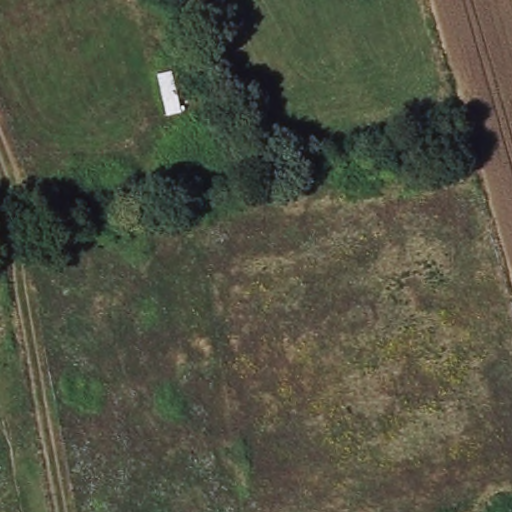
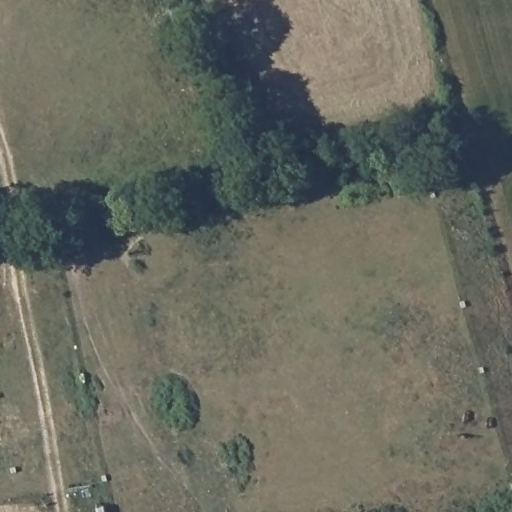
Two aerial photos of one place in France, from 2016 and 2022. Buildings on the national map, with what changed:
unchanged [(183,72),(191,112),(170,116),(162,76),(183,72)]

